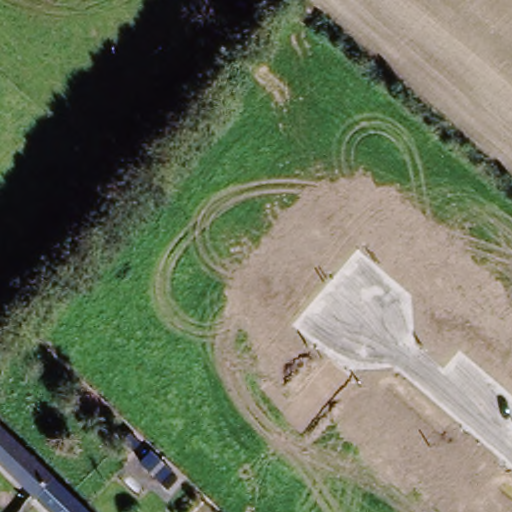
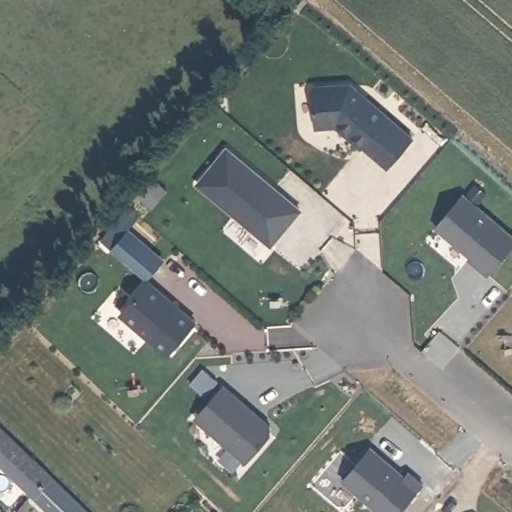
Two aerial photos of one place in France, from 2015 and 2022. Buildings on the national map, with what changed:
new [(351,85),(412,140),(387,169),(362,146),(361,149),(337,126),(317,128),(315,87),(351,85)]
new [(230,148),(301,210),(272,244),(201,184),(230,148)]
new [(437,227),(467,195),(512,236),(512,250),(488,276),(476,265),(470,260),(472,257),(437,227)]
new [(166,261),(148,280),(100,240),(120,220),(166,261)]
new [(150,283),(195,322),(169,354),(123,315),(150,283)]
new [(228,388),(272,427),(273,434),(249,461),(201,418),(228,388)]
unchanged [(33,498),(0,469),(0,430),(52,477),(33,498)]
new [(405,478),(409,475),(422,486),(399,512),(384,512),(348,480),(375,451),(405,478)]
unchanged [(90,512),(48,512),(33,498),(52,477),(90,512)]

